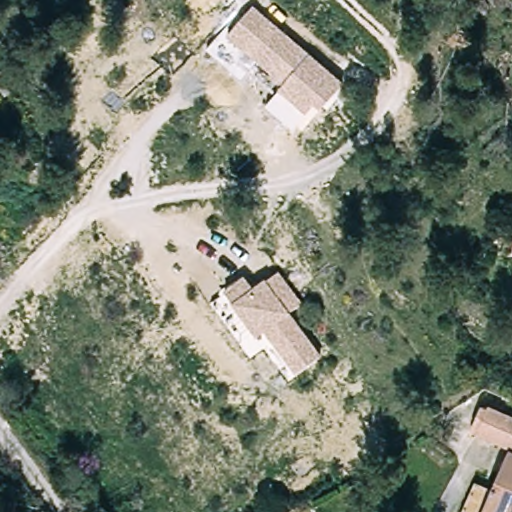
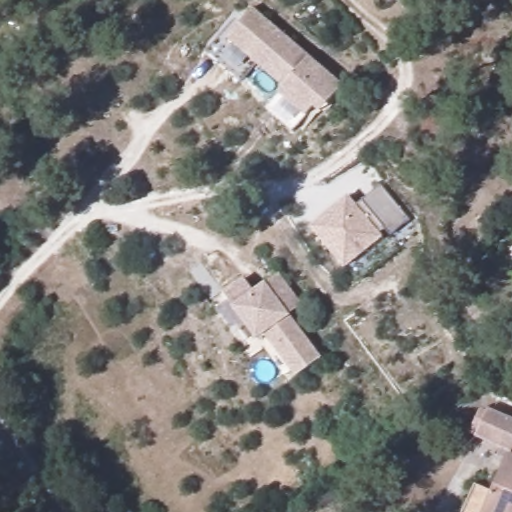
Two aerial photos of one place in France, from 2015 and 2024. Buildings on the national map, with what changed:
unchanged [(311,58),(342,85),(322,112),(312,105),(305,114),(292,132),(265,108),(278,86),(253,61),(240,81),(205,49),(223,28),(234,31),(253,9),(311,58)]
new [(357,204),(362,200),(382,184),(410,220),(390,236),(384,228),(378,232),(381,237),(343,265),(312,223),(350,194),(357,204)]
unchanged [(252,291),(265,284),(280,275),(301,303),(290,315),(320,360),(295,378),(265,332),(255,338),(233,305),(225,290),(243,280),(252,291)]
unchanged [(472,436),(485,405),(512,416),(512,512),(491,512),(485,510),(497,480),(509,452),(472,436)]
unchanged [(485,510),(491,512),(458,512),(475,470),(497,480),(485,510)]

